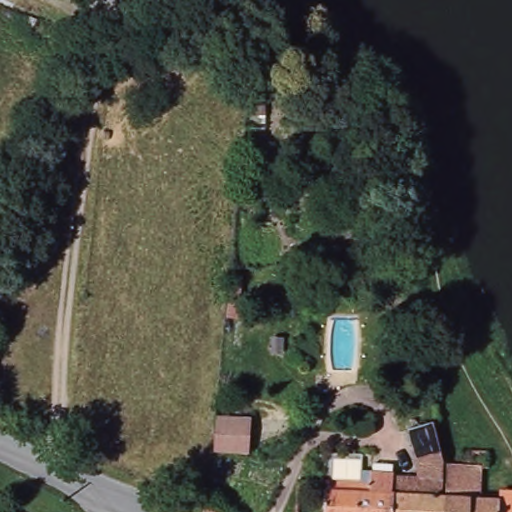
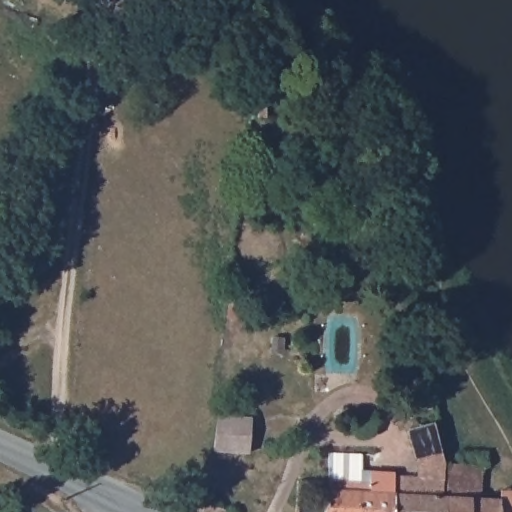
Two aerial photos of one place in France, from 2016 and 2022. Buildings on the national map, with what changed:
unchanged [(233,275),(244,276),(241,318),(228,317),(233,275)]
unchanged [(330,476),(330,451),(363,452),(363,468),(419,471),(421,453),(411,422),(433,415),(434,422),(437,430),(444,455),(451,455),(449,491),(396,490),(394,512),(327,512),(327,477),(330,476)]
unchanged [(222,425),(257,426),(255,455),(219,448),(222,425)]
unchanged [(450,465),(483,465),(482,499),(500,500),(500,512),(449,512),(449,491),(450,465)]
unchanged [(449,491),(449,512),(394,512),(396,490),(449,491)]
unchanged [(228,509),(227,512),(204,512),(210,501),(228,509)]

